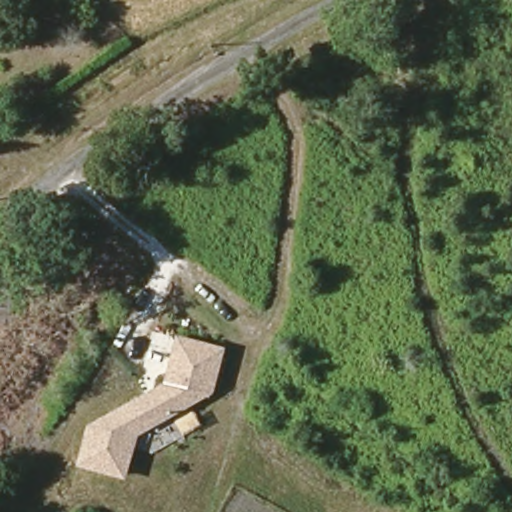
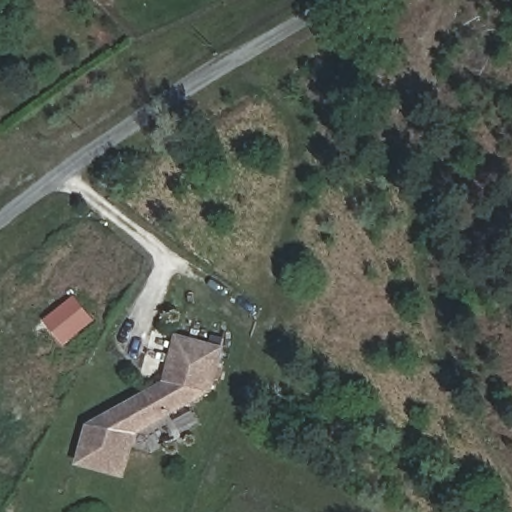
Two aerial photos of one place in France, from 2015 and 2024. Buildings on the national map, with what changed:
new [(75,295),(95,320),(65,345),(44,320),(75,295)]
unchanged [(95,422),(167,385),(179,339),(222,350),(211,392),(139,430),(129,471),(85,460),(95,422)]

